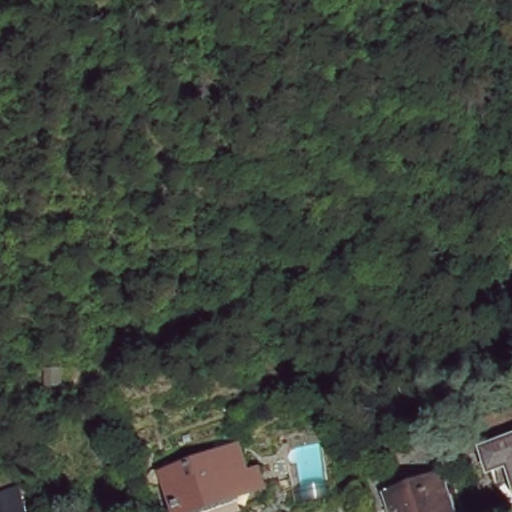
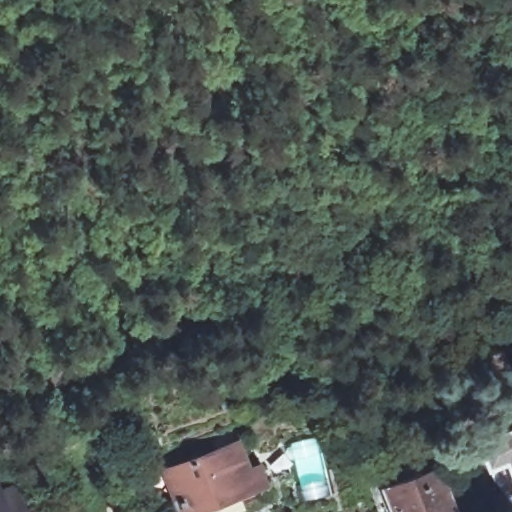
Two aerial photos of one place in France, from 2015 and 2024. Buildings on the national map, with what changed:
unchanged [(508,467),(490,473),(478,437),(512,424),(512,476),(508,467)]
unchanged [(182,495),(180,492),(169,496),(164,483),(176,478),(165,453),(232,427),(255,486),(235,494),(189,512),(182,495)]
unchanged [(389,498),(382,478),(436,459),(445,481),(456,512),(390,512),(385,500),(389,498)]
unchanged [(21,512),(0,512),(0,493),(13,488),(21,512)]

